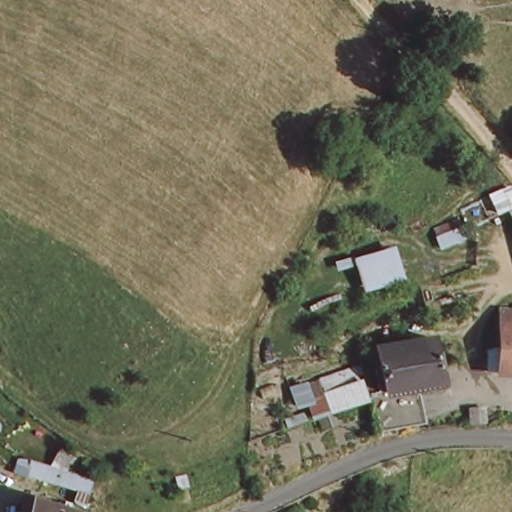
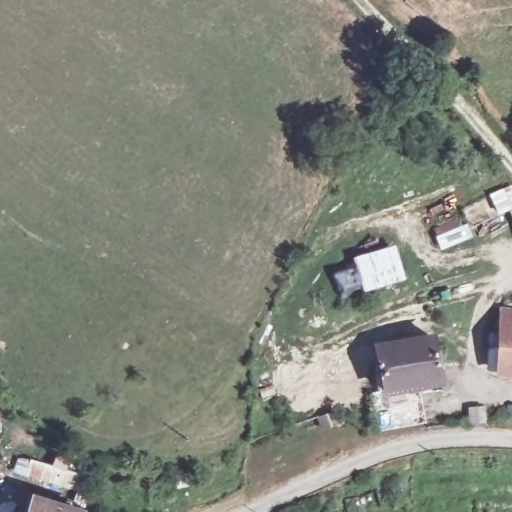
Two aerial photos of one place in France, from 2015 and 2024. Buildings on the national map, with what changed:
unchanged [(512,201),(512,216),(507,202),(512,201)]
unchanged [(400,276),(360,293),(350,259),(395,244),(400,276)]
unchanged [(495,314),(512,315),(512,332),(495,331),(495,314)]
unchanged [(512,332),(512,378),(493,377),(495,331),(512,332)]
unchanged [(377,370),(372,342),(427,332),(436,377),(412,381),(380,387),(377,370)]
unchanged [(299,386),(377,370),(380,387),(366,389),(368,404),(305,418),(299,386)]
unchanged [(380,387),(412,381),(418,415),(371,423),(368,404),(366,389),(380,387)]
unchanged [(30,457),(92,477),(88,491),(26,472),(30,457)]
unchanged [(68,509),(78,512),(29,512),(33,498),(61,507),(68,509)]

